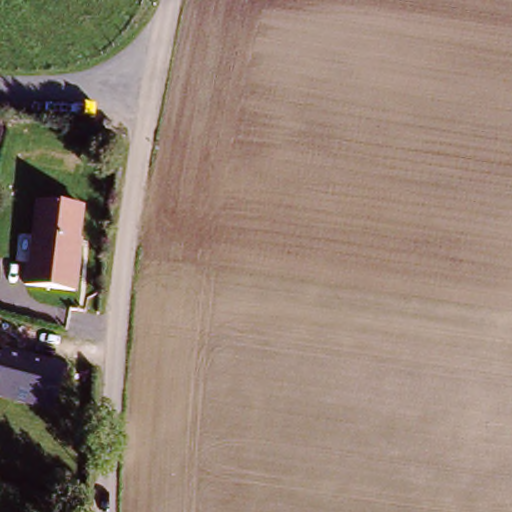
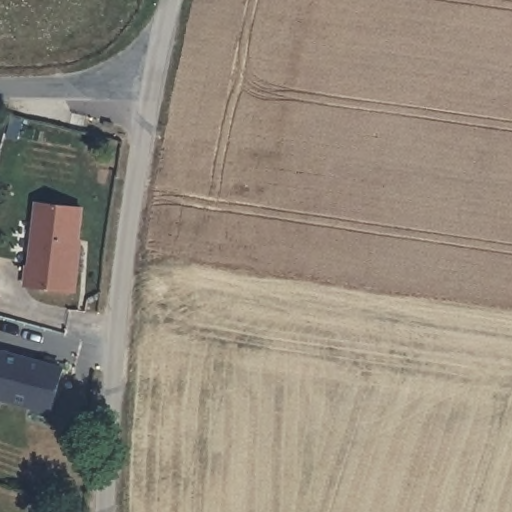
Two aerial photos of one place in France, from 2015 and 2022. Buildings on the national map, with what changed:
unchanged [(85,207),(76,293),(26,286),(35,202),(85,207)]
unchanged [(65,368),(52,417),(0,403),(0,362),(2,352),(65,368)]

